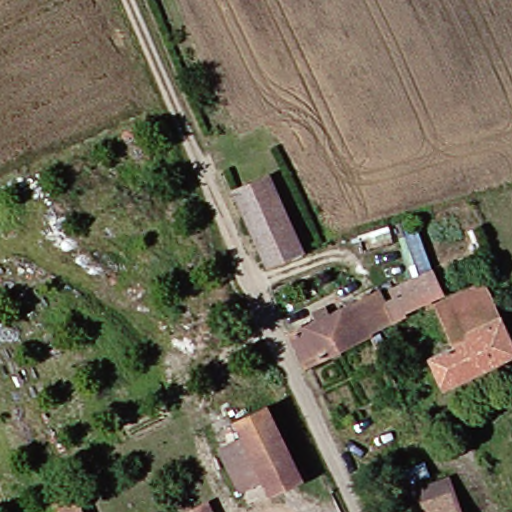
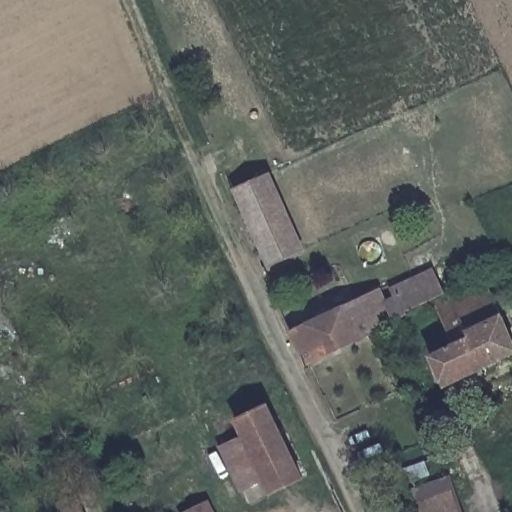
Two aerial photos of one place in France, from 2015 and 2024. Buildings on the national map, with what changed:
unchanged [(278,184),(306,240),(272,256),(246,200),(278,184)]
unchanged [(408,315),(410,318),(373,335),(309,364),(294,332),(386,291),(393,306),(403,302),(400,294),(439,276),(441,281),(453,276),(460,290),(408,315)]
unchanged [(443,305),(474,290),(479,304),(488,324),(468,334),(472,341),(460,346),(443,305)]
unchanged [(468,334),(488,324),(479,304),(493,296),(512,336),(512,355),(448,387),(433,359),(460,346),(472,341),(468,334)]
unchanged [(304,479),(273,494),(238,422),(269,408),(304,479)]
unchanged [(244,439),(266,482),(242,494),(223,449),(244,439)]
unchanged [(406,465),(427,456),(434,474),(414,483),(406,465)]
unchanged [(452,477),(464,512),(424,512),(415,491),(452,477)]
unchanged [(73,501),(83,497),(89,512),(66,512),(63,505),(73,501)]
unchanged [(215,512),(209,512),(214,509),(215,512)]

